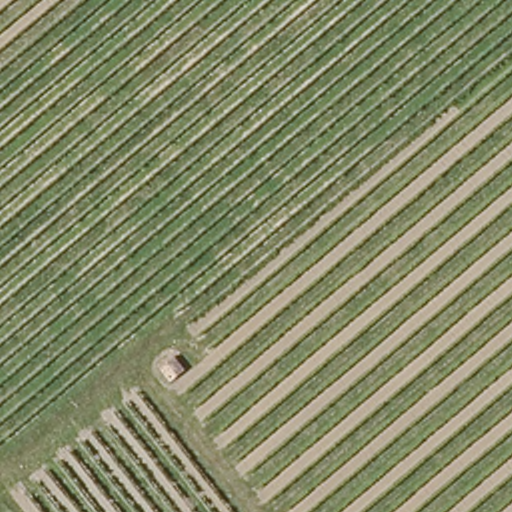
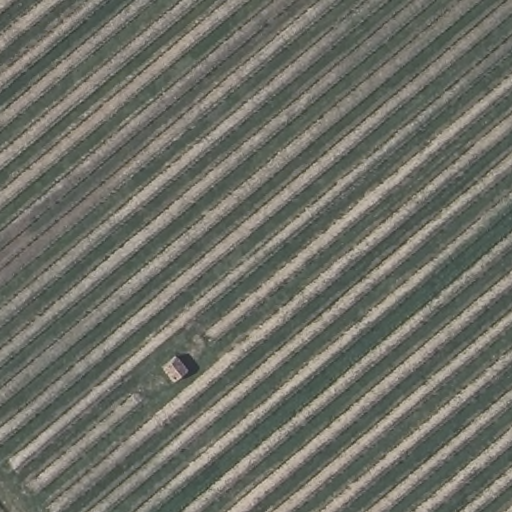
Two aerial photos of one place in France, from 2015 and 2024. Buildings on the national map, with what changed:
unchanged [(178,362),(188,372),(175,382),(166,371),(178,362)]

